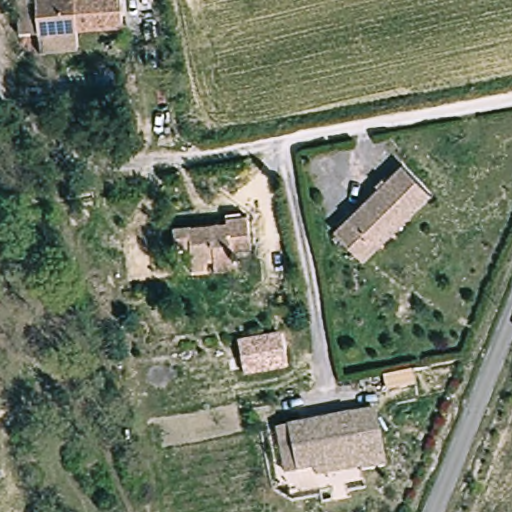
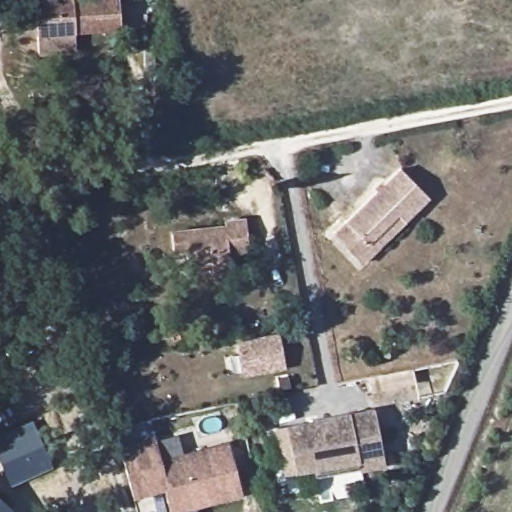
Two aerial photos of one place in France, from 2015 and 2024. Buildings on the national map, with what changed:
unchanged [(42,57),(39,41),(20,42),(16,8),(63,4),(63,0),(79,0),(80,3),(121,0),(125,35),(75,39),(76,55),(42,57)]
unchanged [(364,265),(335,232),(403,167),(433,197),(411,220),(378,252),(364,265)]
unchanged [(211,272),(210,262),(190,262),(188,252),(170,252),(168,232),(225,226),(225,219),(244,217),(248,248),(228,251),(230,270),(211,272)]
unchanged [(243,377),(237,341),(281,332),(286,370),(243,377)]
new [(407,371),(409,386),(379,392),(376,377),(407,371)]
unchanged [(316,468),(296,473),(285,476),(273,428),(285,426),(372,406),(385,463),(362,468),(319,477),(316,468)]
new [(53,465),(10,483),(2,467),(0,468),(0,431),(32,418),(53,465)]
new [(164,465),(232,446),(245,495),(181,512),(177,512),(171,489),(137,498),(124,450),(158,441),(164,465)]
new [(14,512),(0,512),(0,498),(15,511),(14,512)]

